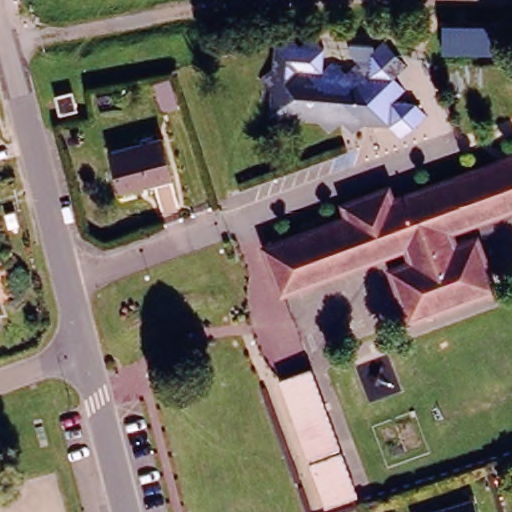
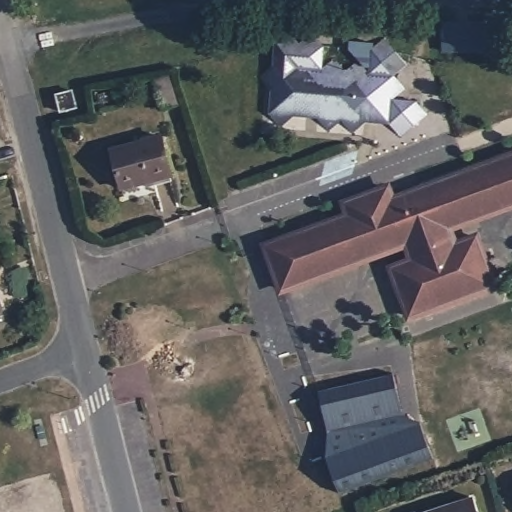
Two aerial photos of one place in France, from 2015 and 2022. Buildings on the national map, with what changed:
unchanged [(492,54),(439,57),(438,36),(489,32),(492,54)]
unchanged [(269,47),(316,47),(315,72),(319,72),(319,64),(333,64),(334,72),(361,72),(361,65),(356,65),(339,48),(339,40),(361,40),(361,47),(386,47),(385,95),(411,95),(409,120),(356,120),(268,119),(269,47)]
unchanged [(76,96),(59,99),(57,86),(74,82),(76,96)]
unchanged [(164,179),(114,191),(106,152),(155,142),(164,179)]
unchanged [(341,219),(337,206),(378,191),(381,202),(461,174),(512,155),(512,206),(443,231),(449,249),(471,240),(488,288),(404,317),(388,270),(409,263),(403,245),(354,262),(275,292),(258,248),(341,219)]
demolished [(306,367),(324,415),(301,422),(291,426),(274,379),(306,367)]
new [(422,424),(434,458),(340,492),(328,458),(329,432),(319,392),(395,374),(404,415),(422,424)]
demolished [(301,456),(291,426),(301,422),(324,415),(334,443),(301,456)]
demolished [(337,452),(351,493),(320,506),(304,464),(337,452)]
unchanged [(425,512),(472,497),(477,512),(425,512)]

